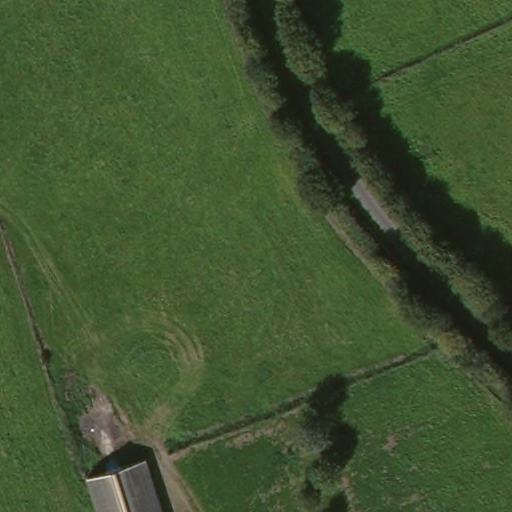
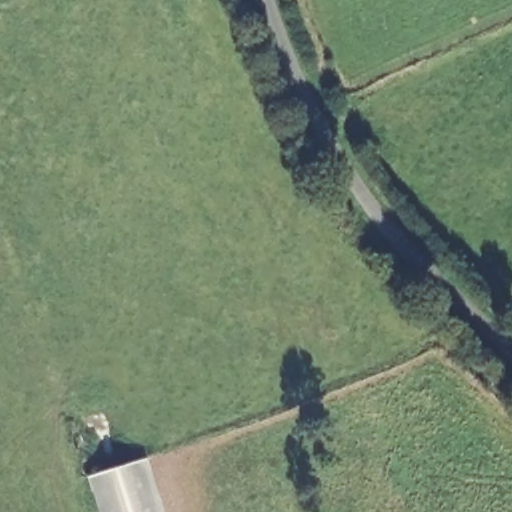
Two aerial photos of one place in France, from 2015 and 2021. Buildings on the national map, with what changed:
unchanged [(97,512),(86,475),(141,458),(158,512),(97,512)]

